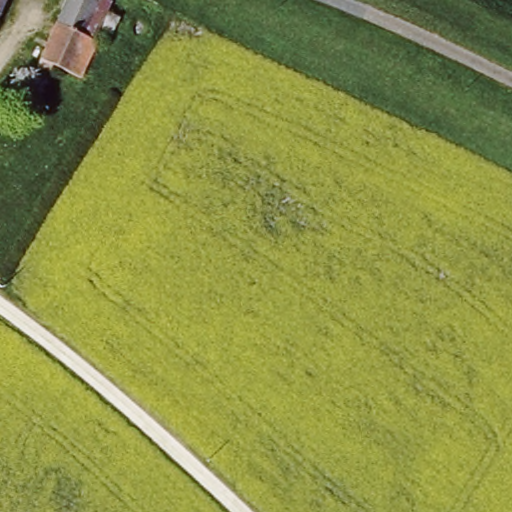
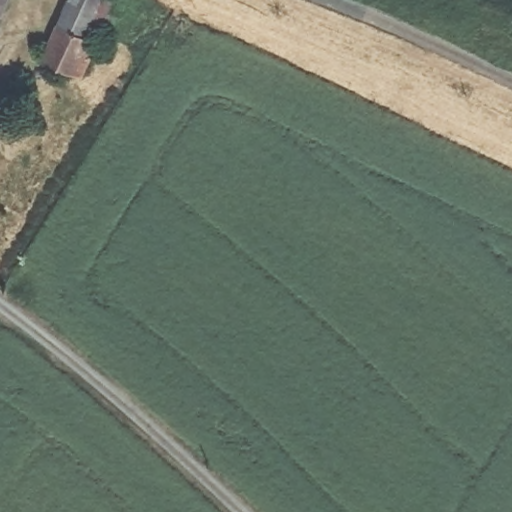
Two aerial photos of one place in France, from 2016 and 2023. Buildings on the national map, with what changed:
unchanged [(0,0),(3,0),(0,6),(0,0)]
unchanged [(99,13),(110,19),(103,34),(93,29),(68,87),(46,76),(40,85),(28,78),(63,0),(94,0),(103,4),(99,13)]

